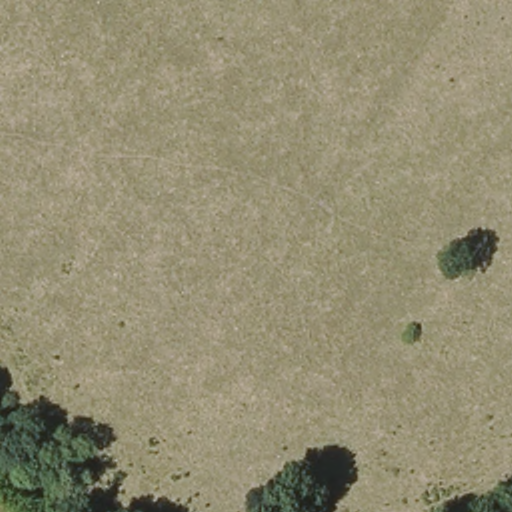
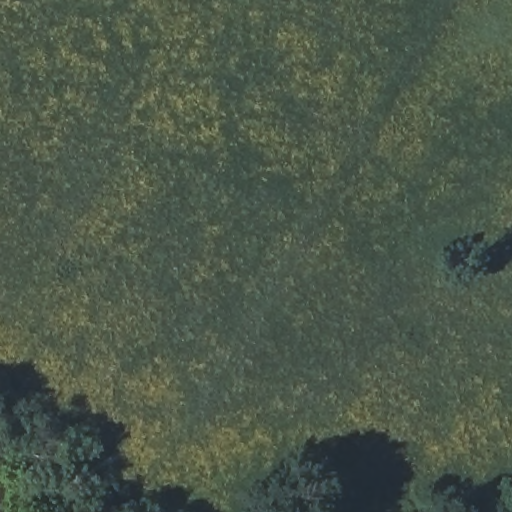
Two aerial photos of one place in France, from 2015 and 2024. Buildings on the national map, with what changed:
[]

